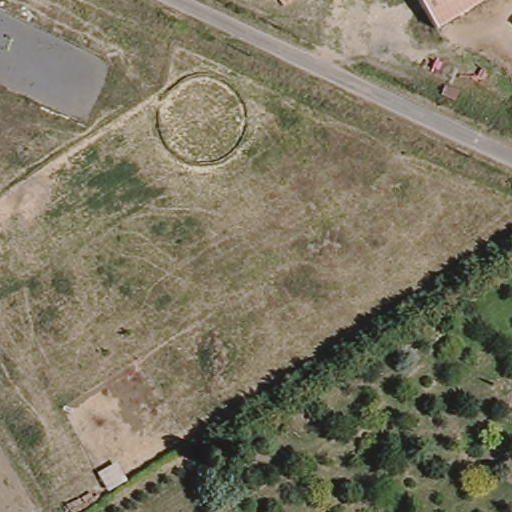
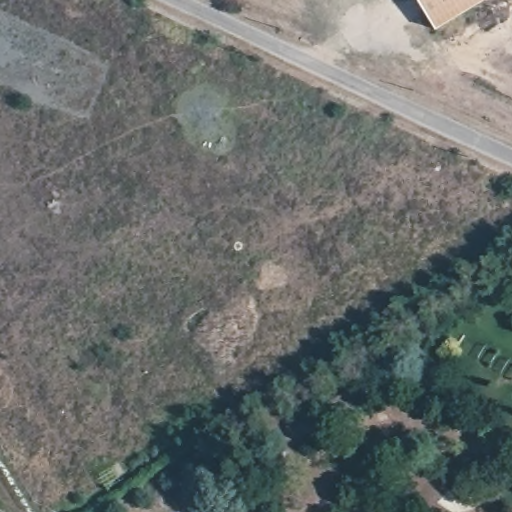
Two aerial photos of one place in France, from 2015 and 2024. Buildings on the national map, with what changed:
unchanged [(436,27),(420,0),(483,0),(436,27)]

